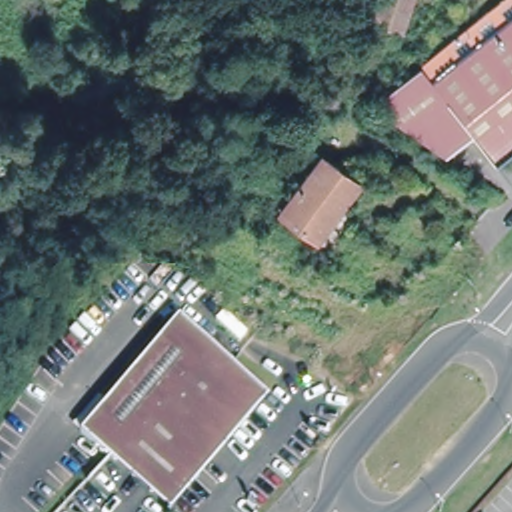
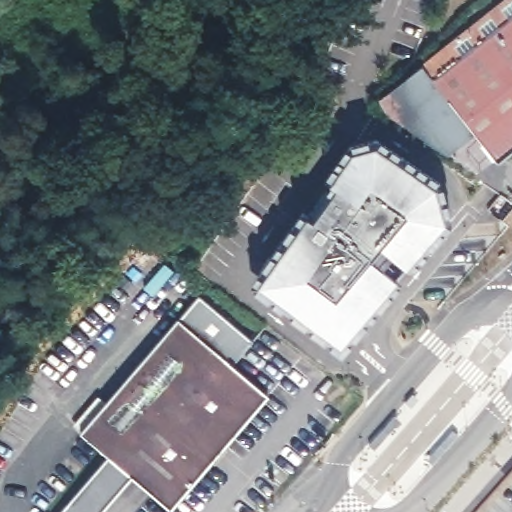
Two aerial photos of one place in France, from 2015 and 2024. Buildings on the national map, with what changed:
unchanged [(360,12),(363,0),(387,0),(382,17),(360,12)]
unchanged [(512,0),(512,149),(500,159),(477,127),(431,61),(503,0),(512,0)]
unchanged [(387,96),(431,61),(477,127),(443,154),(374,107),(387,96)]
new [(313,216),(337,184),(330,179),(355,147),(377,142),(437,182),(445,220),(342,342),(258,281),(307,212),(313,216)]
demolished [(353,187),(313,240),(281,216),(319,162),(353,187)]
new [(179,318),(200,295),(253,340),(232,364),(179,318)]
unchanged [(266,393),(170,507),(82,432),(179,318),(266,393)]

